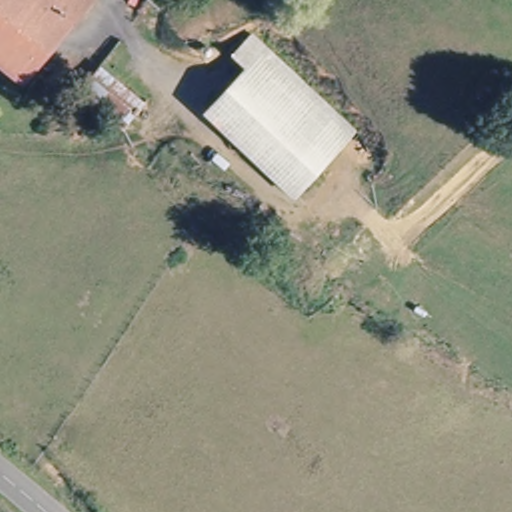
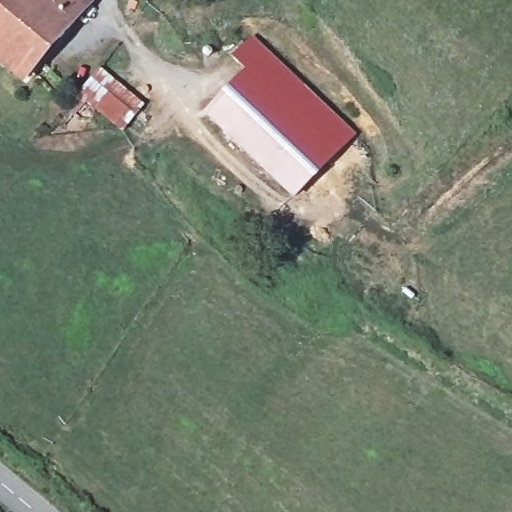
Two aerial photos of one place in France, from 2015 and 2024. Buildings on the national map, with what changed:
unchanged [(20,84),(0,65),(0,0),(86,0),(89,4),(37,64),(20,84)]
unchanged [(356,148),(294,208),(218,123),(255,87),(240,72),(265,48),(356,148)]
unchanged [(150,105),(123,134),(76,100),(100,68),(150,105)]

